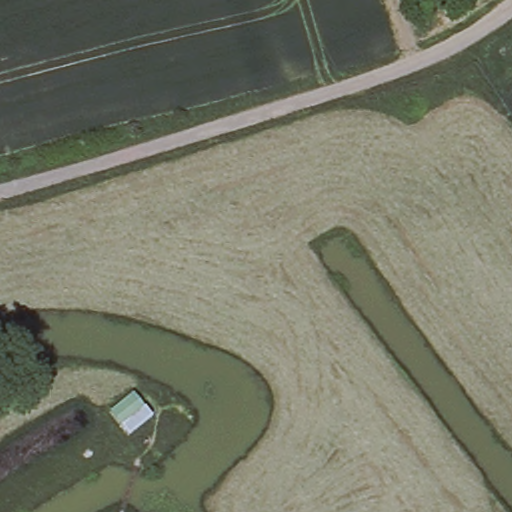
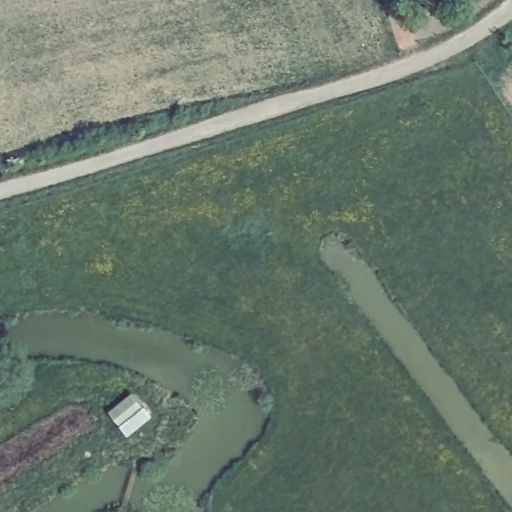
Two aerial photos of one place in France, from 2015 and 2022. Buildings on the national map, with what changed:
unchanged [(118,417),(144,399),(154,418),(131,435),(118,417)]

